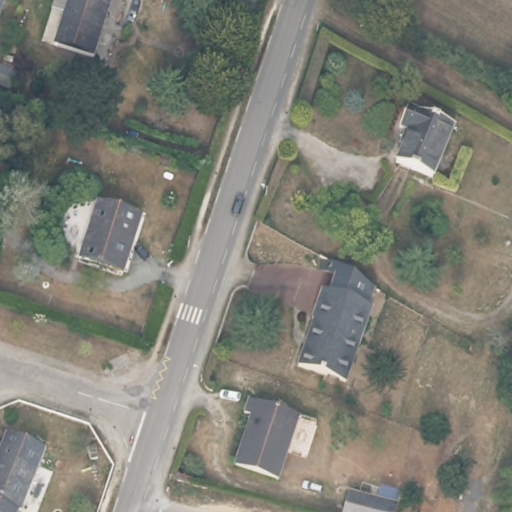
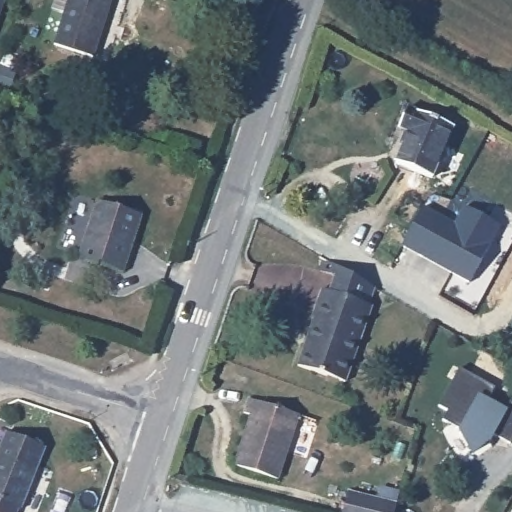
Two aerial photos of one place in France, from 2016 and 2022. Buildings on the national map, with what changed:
unchanged [(65,19),(52,14),(56,0),(114,0),(94,62),(55,49),(65,19)]
unchanged [(4,3),(0,13),(0,1),(4,3)]
unchanged [(9,89),(0,86),(0,70),(1,67),(16,73),(9,89)]
unchanged [(1,160),(0,160),(0,107),(10,109),(1,160)]
unchanged [(432,179),(395,163),(408,133),(399,129),(407,109),(453,128),(432,179)]
unchanged [(119,278),(75,263),(93,206),(137,220),(119,278)]
new [(423,207),(453,223),(464,207),(501,226),(470,283),(402,246),(423,207)]
unchanged [(298,371),(314,324),(312,323),(322,294),(328,297),(334,280),(318,275),(322,264),(337,272),(375,294),(369,310),(371,311),(346,387),(298,371)]
unchanged [(129,362),(115,369),(111,361),(125,354),(129,362)]
new [(460,428),(443,420),(448,411),(440,406),(459,369),(495,388),(488,399),(507,409),(512,400),(512,439),(510,444),(496,434),(490,443),(472,456),(458,432),(460,428)]
unchanged [(277,479),(235,466),(252,416),(245,413),(249,399),(299,416),(277,479)]
unchanged [(21,510),(19,509),(18,512),(0,512),(0,448),(6,433),(46,448),(21,510)]
unchanged [(395,512),(343,512),(348,492),(397,504),(395,512)]

